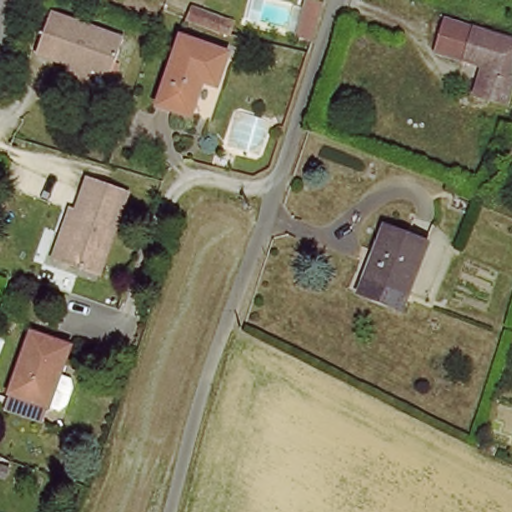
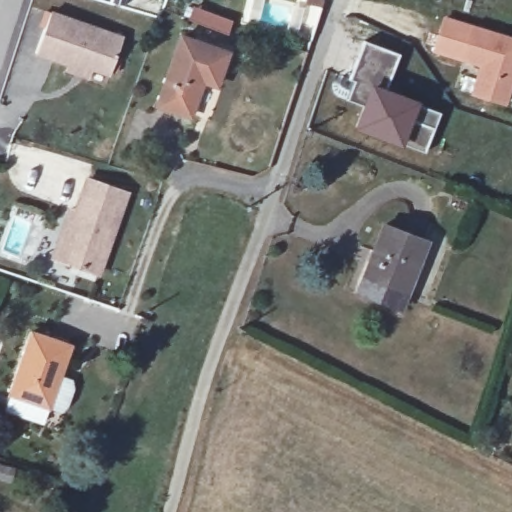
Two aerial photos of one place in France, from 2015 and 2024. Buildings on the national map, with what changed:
unchanged [(301,0),(320,0),(318,5),(301,0)]
unchanged [(22,65),(51,8),(132,37),(108,95),(22,65)]
unchanged [(201,17),(221,23),(216,35),(196,29),(201,17)]
unchanged [(501,102),(470,94),(478,66),(431,52),(442,20),(512,41),(512,66),(501,102)]
unchanged [(178,37),(221,50),(210,85),(197,81),(186,114),(154,104),(178,37)]
new [(400,54),(385,87),(419,103),(440,111),(423,152),(403,142),(399,149),(353,129),(361,106),(348,101),(355,81),(348,80),(364,39),(400,54)]
unchanged [(85,184),(127,200),(96,280),(54,263),(73,215),(85,184)]
unchanged [(381,228),(425,244),(403,306),(357,288),(381,228)]
unchanged [(31,331),(69,346),(42,411),(4,396),(31,331)]

